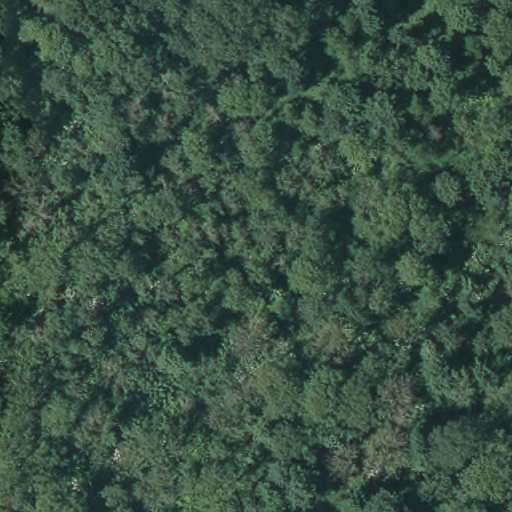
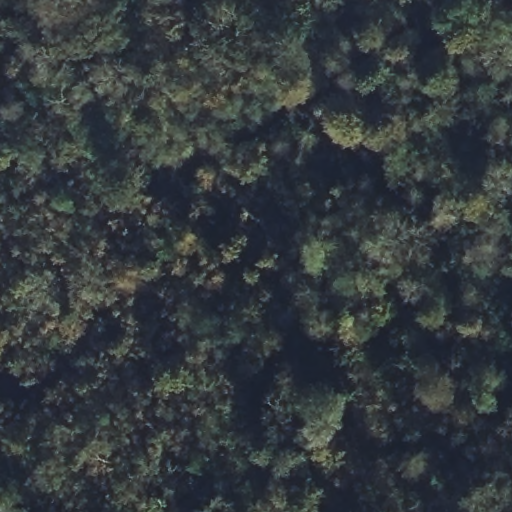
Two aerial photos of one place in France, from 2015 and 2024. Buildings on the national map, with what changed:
unchanged [(512,138),(512,178),(490,151),(509,134),(512,138)]

